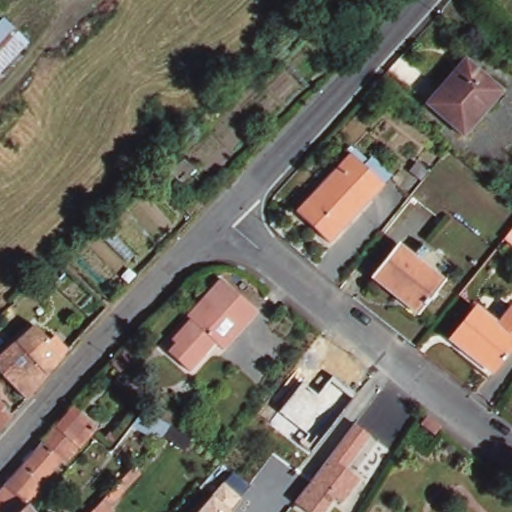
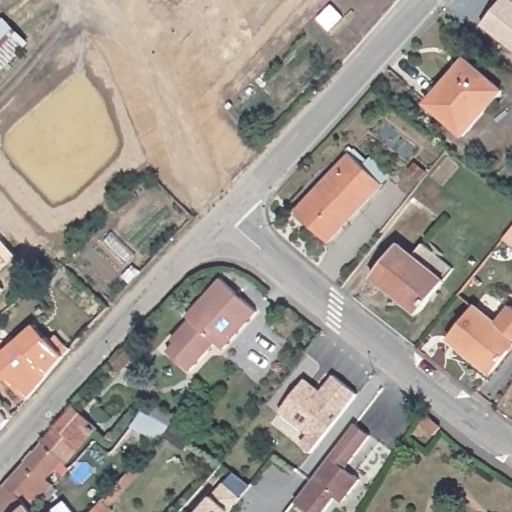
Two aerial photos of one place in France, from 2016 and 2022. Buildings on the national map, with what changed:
new [(512,0),(512,47),(482,22),(500,0),(512,0)]
unchanged [(10,20),(35,44),(0,80),(0,30),(10,20)]
unchanged [(429,104),(446,85),(450,88),(475,60),(509,90),(467,137),(429,104)]
unchanged [(302,214),(358,155),(391,185),(335,244),(302,214)]
unchanged [(375,280),(402,246),(415,258),(425,247),(456,272),(420,317),(375,280)]
unchanged [(265,313),(230,348),(223,340),(195,368),(174,348),(202,320),(194,312),(229,278),(265,313)]
unchanged [(512,311),(512,353),(497,373),(455,341),(481,306),(503,323),(512,311)]
unchanged [(4,369),(0,372),(0,360),(1,361),(38,322),(70,355),(56,369),(32,396),(4,369)]
unchanged [(320,395),(333,377),(356,395),(313,452),(303,444),(310,435),(279,410),(303,382),(320,395)]
unchanged [(0,431),(0,397),(3,395),(15,408),(18,412),(1,431),(0,431)]
unchanged [(98,426),(70,456),(67,453),(46,435),(74,405),(98,426)]
unchanged [(434,435),(420,426),(426,418),(439,428),(434,435)]
unchanged [(373,432),(350,468),(360,476),(330,512),(306,512),(294,502),(356,422),(373,432)]
unchanged [(43,479),(51,486),(40,498),(34,493),(31,498),(10,478),(46,435),(67,453),(43,479)]
unchanged [(133,468),(140,475),(112,506),(116,510),(114,512),(92,512),(133,468)]
unchanged [(234,473),(249,486),(231,510),(231,512),(198,512),(234,473)]
unchanged [(27,502),(26,502),(23,501),(13,512),(0,512),(0,488),(10,478),(31,498),(27,502)]
unchanged [(33,512),(13,512),(23,501),(26,502),(33,512)]
unchanged [(58,505),(62,512),(51,512),(58,505)]
demolished [(376,508),(382,512),(373,512),(376,508)]

